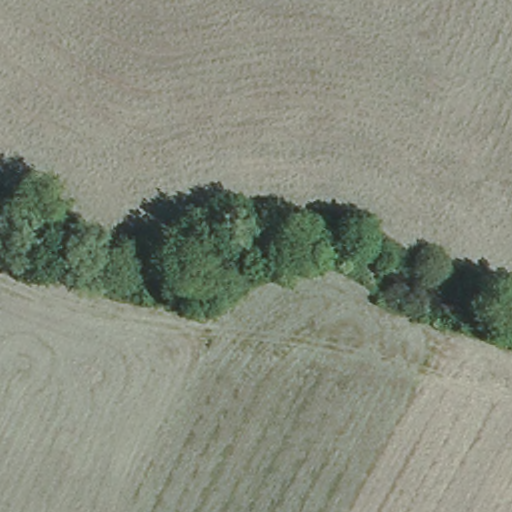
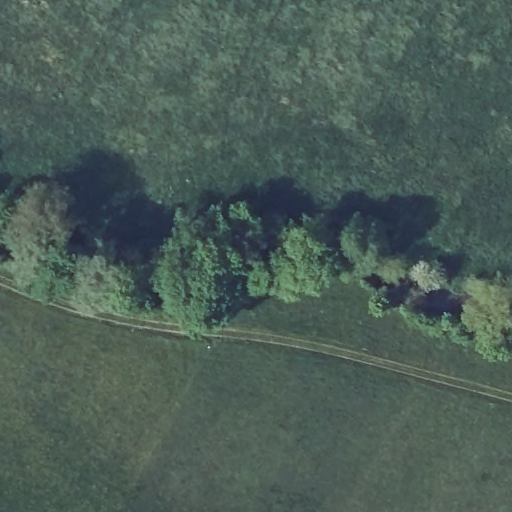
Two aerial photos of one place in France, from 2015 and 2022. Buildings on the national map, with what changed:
[]

